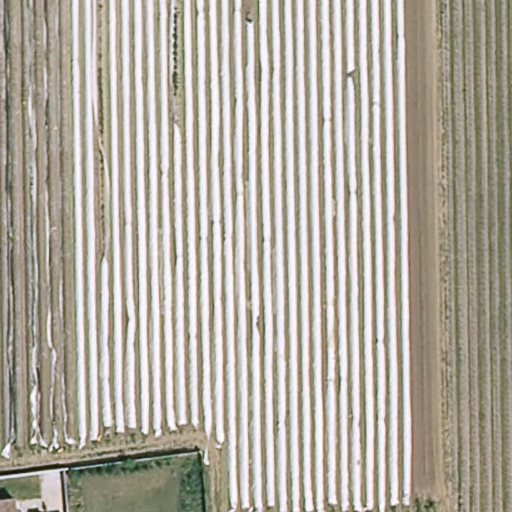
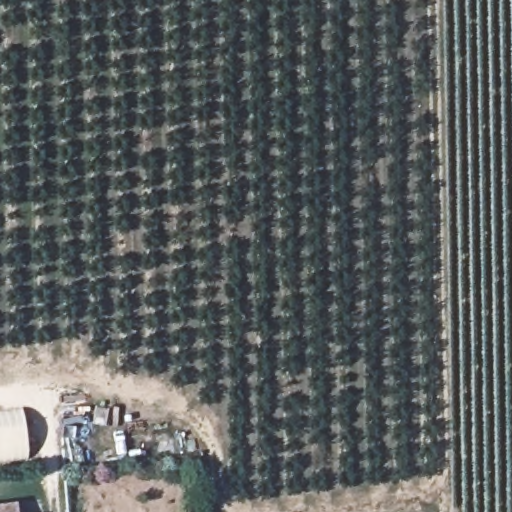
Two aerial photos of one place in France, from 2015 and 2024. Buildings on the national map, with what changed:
new [(0,464),(0,412),(23,409),(28,461),(0,464)]
unchanged [(0,500),(19,497),(21,512),(0,512),(0,500)]

